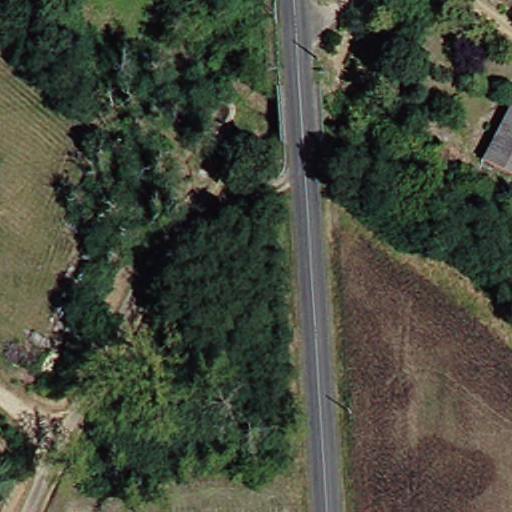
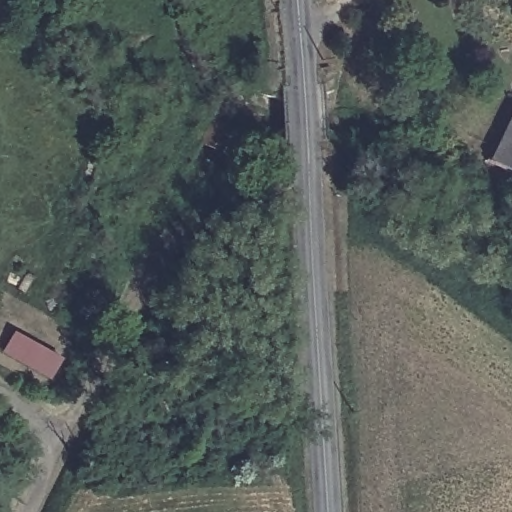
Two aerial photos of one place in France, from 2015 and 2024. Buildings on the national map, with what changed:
unchanged [(484,160),(512,102),(512,103),(512,173),(484,160)]
new [(0,350),(11,330),(60,357),(48,380),(0,353),(0,350)]

